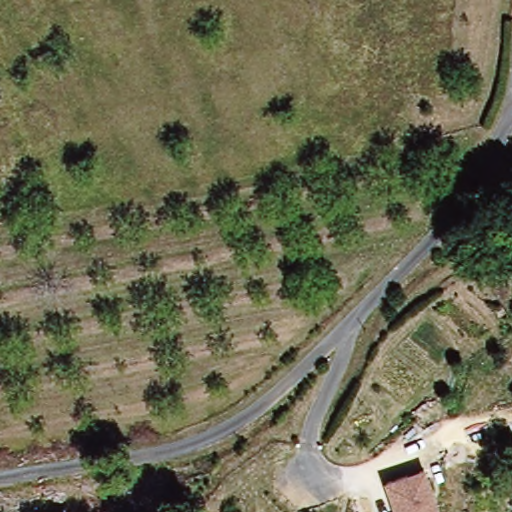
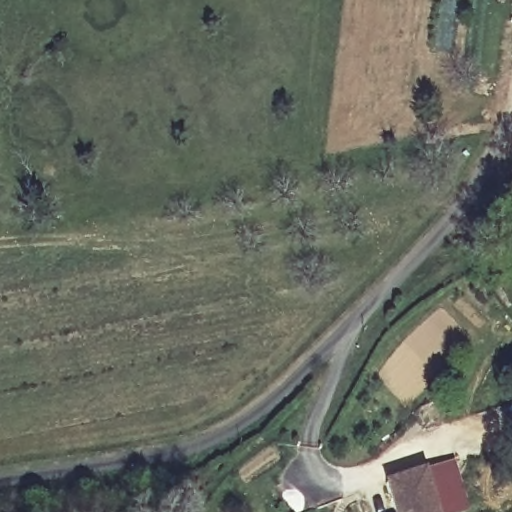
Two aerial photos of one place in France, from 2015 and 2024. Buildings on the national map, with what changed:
new [(472,509),(463,512),(437,512),(426,473),(455,462),(472,509)]
unchanged [(389,483),(426,473),(437,512),(396,512),(389,483)]

